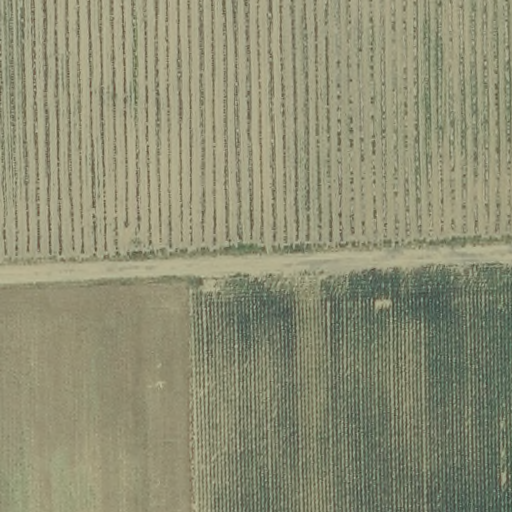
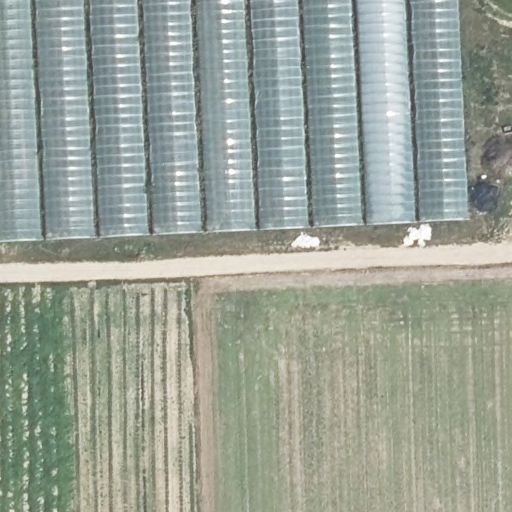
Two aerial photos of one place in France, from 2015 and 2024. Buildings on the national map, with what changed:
new [(0,246),(0,0),(460,0),(470,223),(0,246)]

